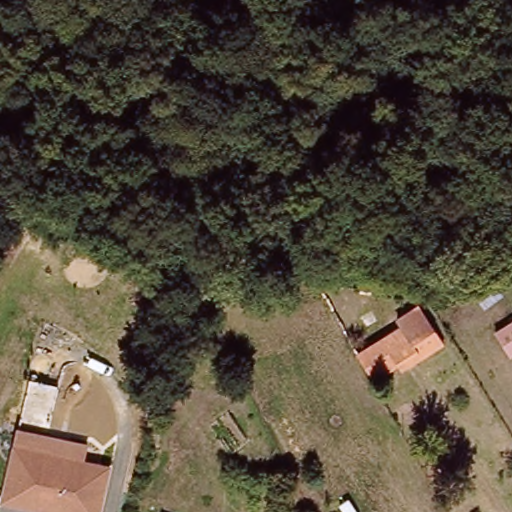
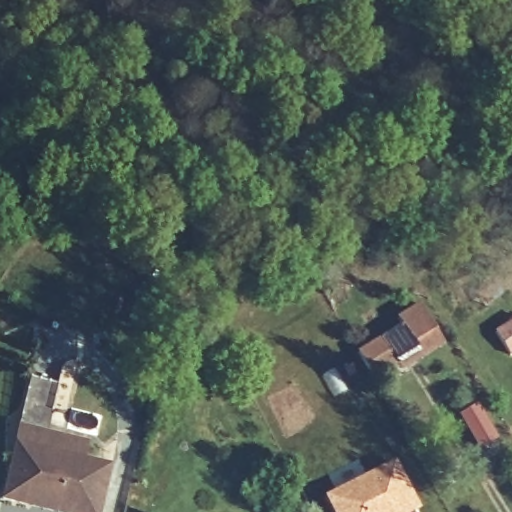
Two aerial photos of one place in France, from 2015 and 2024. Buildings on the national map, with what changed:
unchanged [(503,292),(486,308),(472,294),(493,278),(503,292)]
unchanged [(416,351),(414,348),(372,373),(361,357),(404,331),(399,322),(419,309),(437,338),(416,351)]
unchanged [(493,332),(509,320),(512,318),(512,352),(508,354),(493,332)]
new [(499,438),(478,451),(459,414),(478,402),(499,438)]
unchanged [(20,426),(89,441),(86,456),(17,441),(20,426)]
unchanged [(17,441),(112,462),(107,483),(101,512),(72,512),(29,503),(4,497),(17,441)]
new [(422,509),(416,512),(331,512),(323,497),(396,459),(422,509)]

